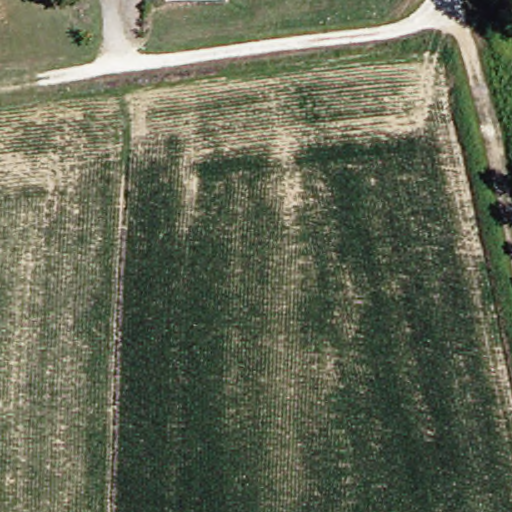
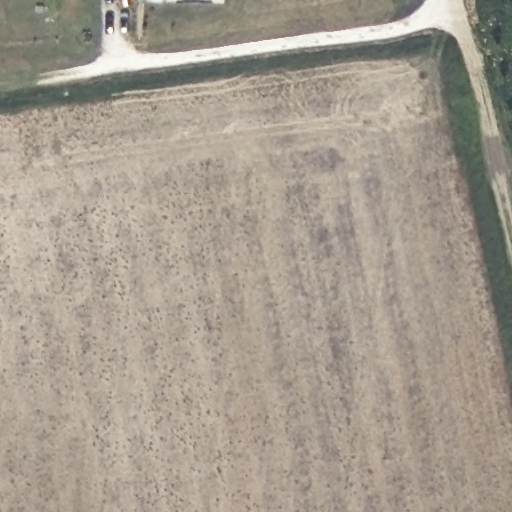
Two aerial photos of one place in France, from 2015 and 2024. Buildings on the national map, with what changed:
[]

